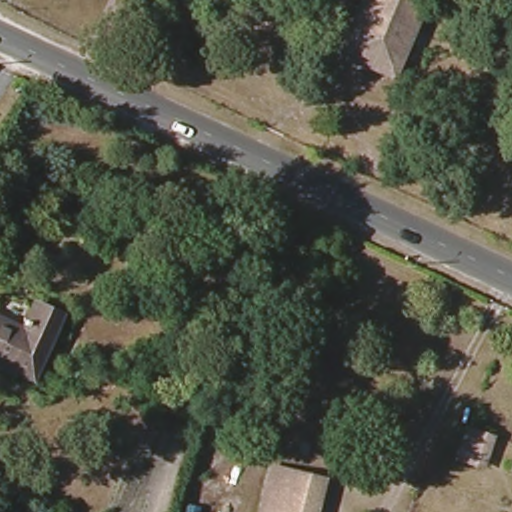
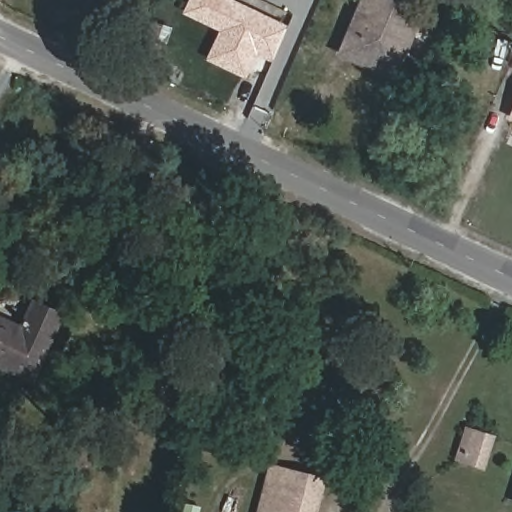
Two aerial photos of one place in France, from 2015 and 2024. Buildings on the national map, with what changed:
new [(257,54),(245,78),(205,60),(218,30),(182,12),(188,0),(234,0),(287,25),(271,61),(257,54)]
unchanged [(363,0),(414,0),(421,3),(393,66),(344,45),(363,0)]
unchanged [(165,43),(147,36),(157,10),(175,17),(165,43)]
new [(507,119),(512,109),(512,121),(507,119)]
unchanged [(0,364),(0,319),(19,327),(30,301),(55,313),(27,376),(0,364)]
unchanged [(478,471),(457,464),(467,432),(488,440),(478,471)]
unchanged [(315,512),(262,512),(272,470),(322,482),(315,512)]
unchanged [(175,512),(171,512),(172,511),(175,512)]

